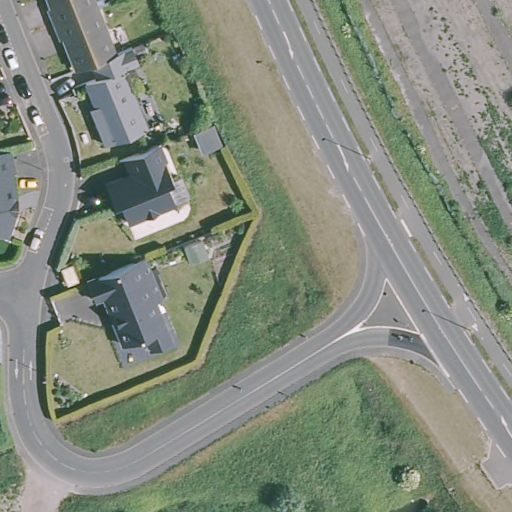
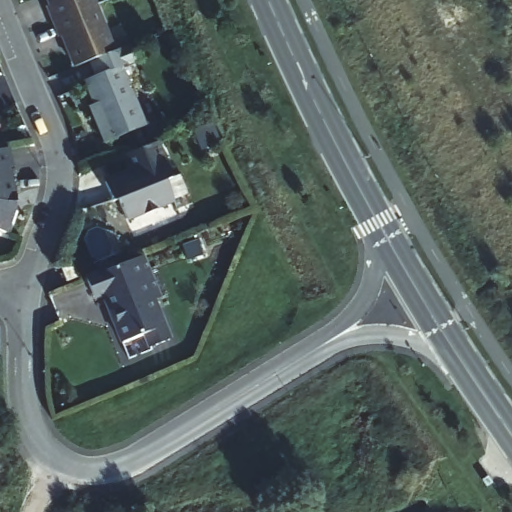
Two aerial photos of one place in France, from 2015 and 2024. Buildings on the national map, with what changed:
unchanged [(95,0),(55,15),(49,0),(95,0)]
unchanged [(98,0),(115,44),(91,54),(75,60),(64,30),(60,31),(55,15),(95,0),(98,0)]
unchanged [(139,54),(123,60),(147,119),(107,136),(95,107),(100,105),(87,74),(97,70),(91,54),(115,44),(132,38),(139,54)]
unchanged [(150,139),(159,136),(172,172),(167,173),(174,194),(125,213),(120,193),(112,195),(105,174),(131,165),(125,149),(150,139)]
unchanged [(13,160),(19,188),(20,189),(17,202),(15,202),(7,225),(0,223),(0,143),(12,141),(15,160),(13,160)]
unchanged [(129,256),(146,249),(164,291),(157,293),(172,333),(152,340),(147,328),(125,337),(105,288),(95,292),(87,273),(129,256)]
unchanged [(61,260),(71,257),(78,273),(67,277),(61,260)]

